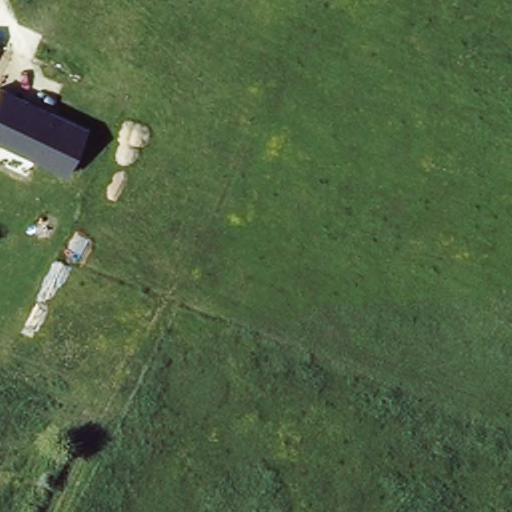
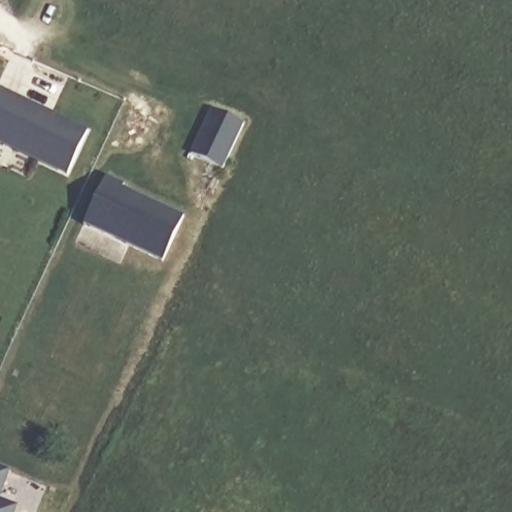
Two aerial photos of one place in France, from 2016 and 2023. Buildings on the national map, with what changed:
unchanged [(68,173),(0,142),(0,87),(88,128),(68,173)]
new [(218,111),(250,126),(229,171),(197,156),(218,111)]
new [(111,183),(127,191),(126,195),(189,223),(169,269),(89,233),(111,183)]
new [(0,498),(0,470),(10,475),(0,498)]
new [(0,512),(0,506),(15,512),(0,512)]

